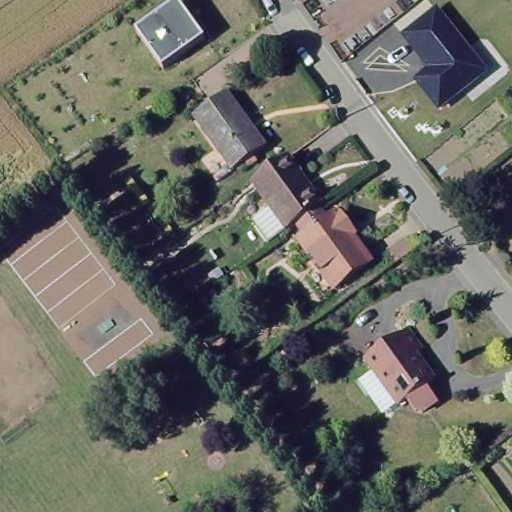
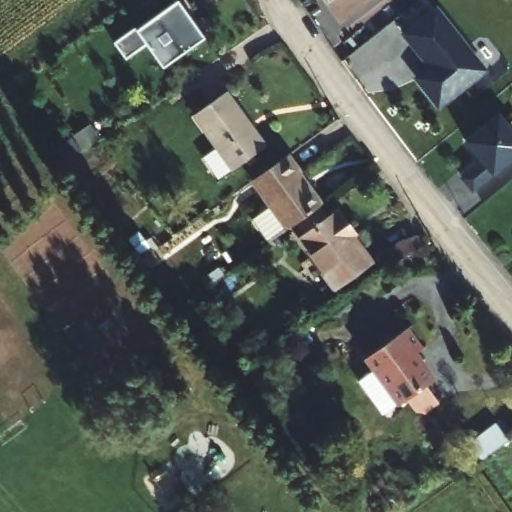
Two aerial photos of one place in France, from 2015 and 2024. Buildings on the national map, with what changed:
unchanged [(180,0),(181,0),(207,39),(165,67),(137,30),(180,0)]
unchanged [(407,73),(419,62),(396,36),(430,7),(487,70),(437,108),(407,73)]
unchanged [(235,104),(273,158),(239,182),(202,127),(235,104)]
new [(512,160),(492,176),(472,192),(460,177),(478,160),(463,142),(499,114),(512,129),(512,160)]
unchanged [(302,222),(285,232),(276,239),(270,243),(267,245),(250,224),(258,217),(268,211),(257,195),(248,184),(290,155),(298,167),(302,173),(295,177),(305,193),(311,189),(322,207),(331,220),(337,215),(353,237),(317,262),(302,240),(310,235),(302,222)]
unchanged [(418,230),(425,240),(402,257),(392,245),(418,230)]
unchanged [(353,237),(371,262),(335,289),(317,262),(353,237)]
unchanged [(363,362),(408,328),(423,350),(415,356),(433,381),(424,387),(437,405),(423,416),(416,415),(405,401),(395,408),(391,402),(375,413),(351,379),(367,367),(363,362)]

